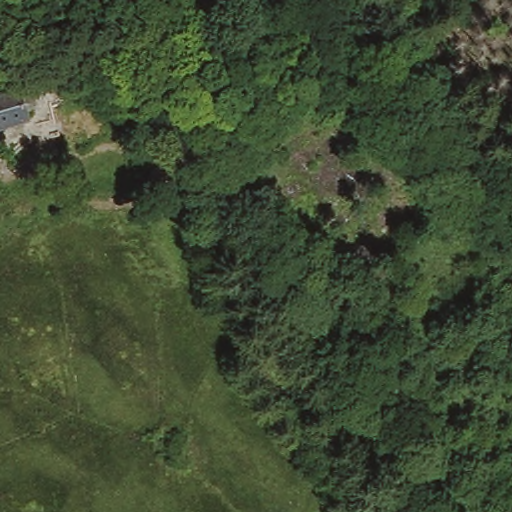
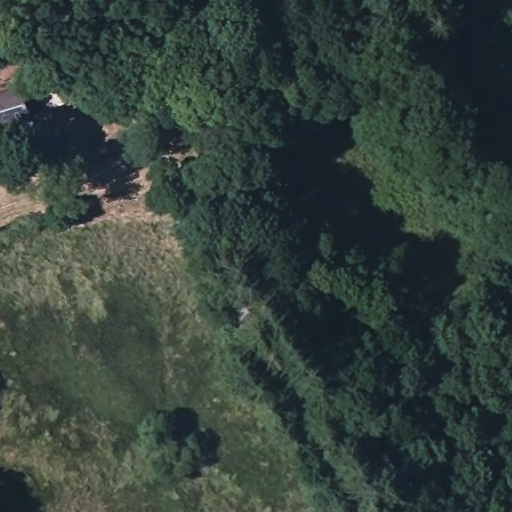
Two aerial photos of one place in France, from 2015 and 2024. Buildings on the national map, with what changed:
unchanged [(0,127),(0,96),(18,92),(25,120),(0,127)]

